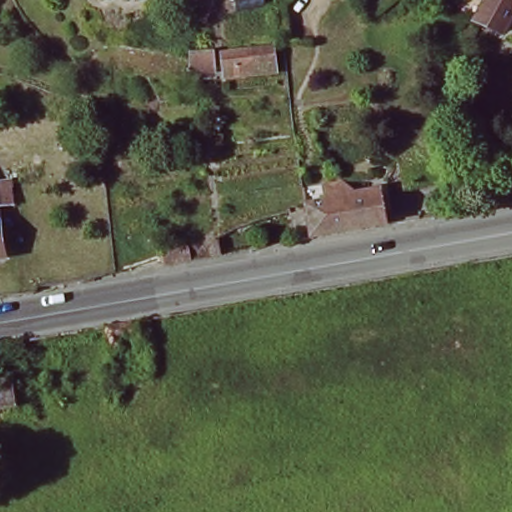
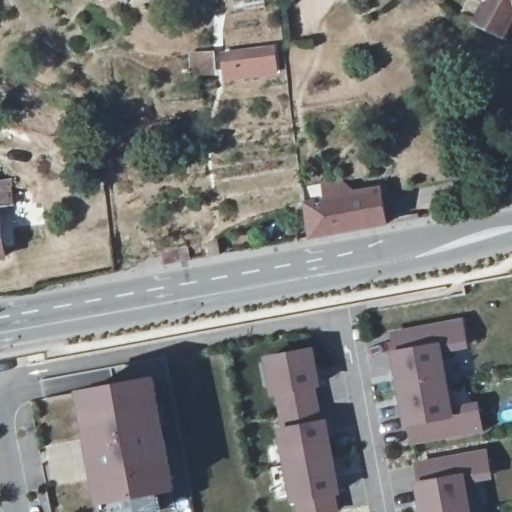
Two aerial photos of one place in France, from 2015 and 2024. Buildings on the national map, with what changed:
unchanged [(484,26),(494,2),(490,0),(512,0),(512,16),(503,34),(484,26)]
unchanged [(284,77),(228,83),(223,68),(194,74),(192,52),(272,39),(284,77)]
unchanged [(18,204),(10,205),(3,205),(10,257),(0,258),(0,180),(15,178),(18,204)]
unchanged [(381,226),(361,230),(338,235),(323,237),(314,239),(313,223),(295,226),(292,214),(309,206),(308,190),(349,182),(354,199),(383,194),(389,225),(381,226)]
unchanged [(211,252),(209,242),(216,240),(219,250),(211,252)]
demolished [(134,343),(133,336),(120,338),(121,346),(108,348),(106,343),(103,325),(113,322),(144,317),(148,341),(134,343)]
new [(463,342),(464,347),(437,351),(443,381),(399,390),(392,354),(394,353),(391,335),(459,322),(463,342)]
new [(309,350),(316,385),(311,386),(314,405),(281,411),(277,393),(273,393),(265,358),(309,350)]
new [(109,370),(166,360),(193,512),(98,512),(93,481),(96,481),(89,440),(85,441),(76,395),(113,389),(109,370)]
new [(449,410),(474,405),(476,410),(479,430),(411,442),(408,425),(405,425),(399,390),(443,381),(449,410)]
new [(284,429),(281,411),(314,405),(317,423),(323,422),(329,458),(286,466),(279,430),(284,429)]
new [(488,477),(462,482),(467,511),(464,512),(422,512),(417,484),(419,483),(416,465),(484,453),(487,472),(488,477)]
new [(336,493),(331,494),(334,512),(298,512),(296,500),(292,501),(286,466),(329,458),(336,493)]
new [(464,512),(467,511),(467,512),(464,512)]

